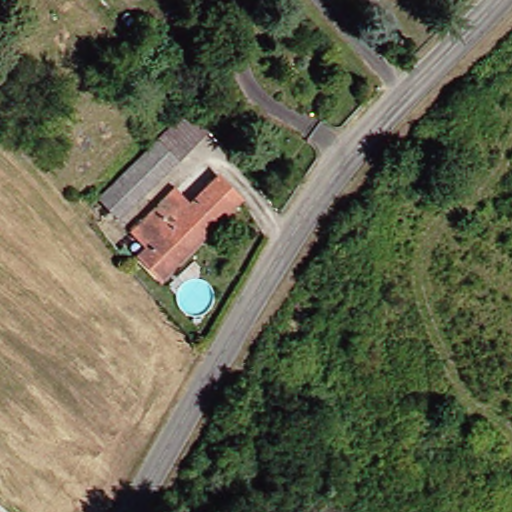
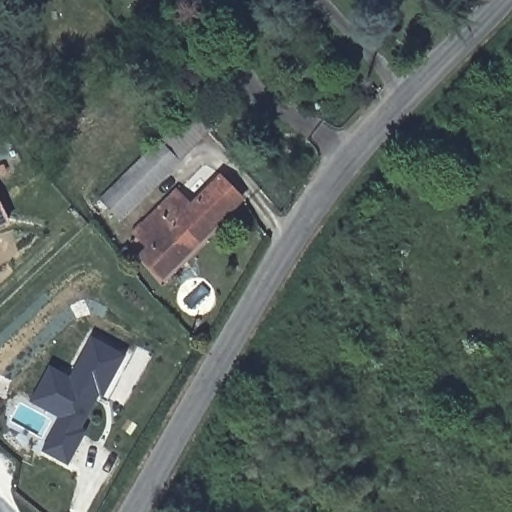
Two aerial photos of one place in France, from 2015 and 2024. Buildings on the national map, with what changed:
unchanged [(206,135),(173,163),(156,143),(154,141),(187,113),(206,135)]
unchanged [(109,220),(89,198),(154,141),(156,143),(173,163),(109,220)]
unchanged [(144,246),(132,231),(173,197),(187,212),(224,182),(242,203),(162,267),(154,274),(136,252),(144,246)]
new [(9,221),(0,225),(0,202),(9,221)]
new [(84,427),(66,461),(41,447),(59,413),(43,404),(30,397),(49,362),(62,370),(69,373),(91,334),(125,352),(103,393),(97,390),(79,424),(84,427)]

